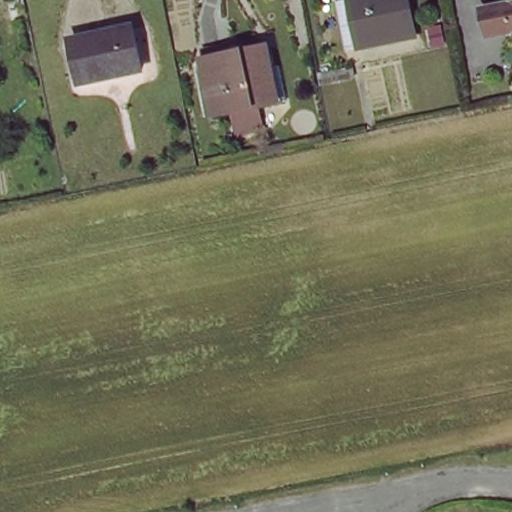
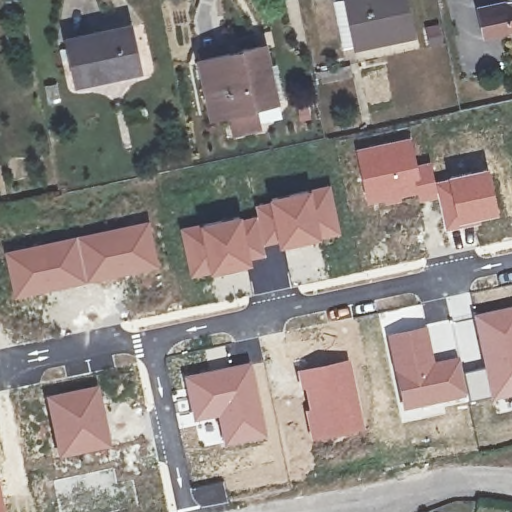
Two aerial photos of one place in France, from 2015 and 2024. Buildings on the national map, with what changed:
unchanged [(405,0),(412,36),(353,48),(345,2),(359,0),(405,0)]
unchanged [(509,23),(510,34),(489,38),(485,8),(512,3),(512,23),(509,23)]
unchanged [(109,75),(77,81),(70,38),(131,26),(136,59),(138,70),(109,75)]
unchanged [(265,45),(274,100),(212,113),(202,59),(265,45)]
new [(412,135),(418,162),(432,160),(435,178),(437,198),(419,203),(417,195),(367,207),(355,147),(412,135)]
new [(489,166),(499,213),(482,218),(482,221),(445,231),(437,198),(435,178),(489,166)]
new [(331,182),(342,235),(279,246),(279,243),(269,199),(268,197),(331,182)]
new [(241,213),(242,215),(255,212),(253,203),(269,199),(279,243),(264,246),(266,256),(252,259),(253,262),(190,278),(179,226),(241,213)]
new [(150,219),(161,268),(87,283),(77,234),(150,219)]
new [(77,234),(87,283),(13,300),(3,249),(77,234)]
new [(482,367),(480,359),(472,314),(512,305),(512,397),(490,402),(489,396),(469,400),(468,397),(462,372),(482,367)]
new [(472,314),(480,359),(460,364),(457,355),(455,350),(433,355),(425,324),(472,314)]
new [(425,324),(433,355),(435,360),(457,355),(460,364),(462,372),(468,397),(401,413),(384,335),(425,324)]
new [(349,359),(364,431),(311,442),(304,410),(306,409),(296,370),(349,359)]
new [(251,361),(268,438),(223,447),(215,419),(192,424),(182,374),(251,361)]
new [(99,384),(112,446),(57,459),(44,395),(99,384)]
new [(223,481),(227,503),(198,508),(192,488),(223,481)]
new [(0,490),(6,512),(0,512),(0,490)]

